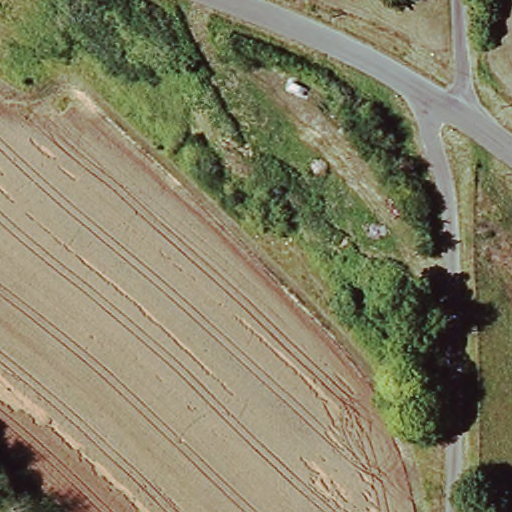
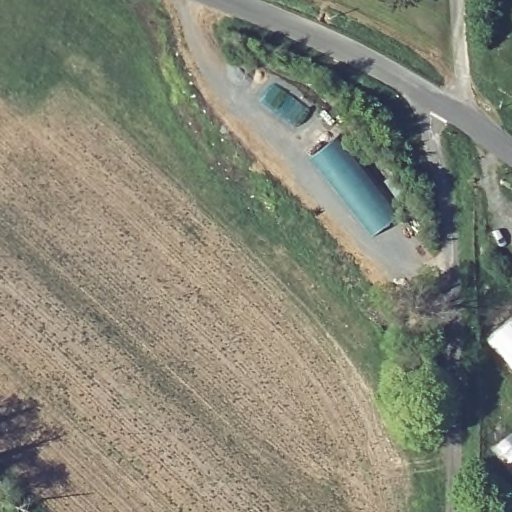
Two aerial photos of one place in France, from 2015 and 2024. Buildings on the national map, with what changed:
new [(310,156),(339,135),(402,215),(372,235),(310,156)]
new [(488,340),(512,319),(512,366),(488,340)]

